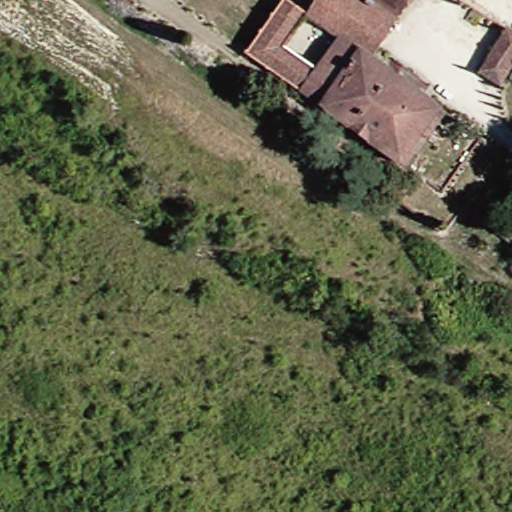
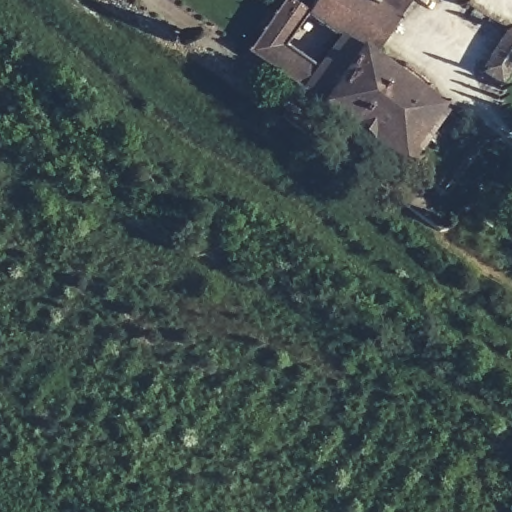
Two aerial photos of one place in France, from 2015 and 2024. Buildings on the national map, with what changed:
unchanged [(324,69),(310,90),(255,51),(287,0),(298,0),(312,12),(291,47),(324,69)]
unchanged [(441,121),(431,137),(415,164),(310,90),(324,69),(346,36),(312,12),(318,4),(312,0),(414,0),(378,57),(441,102),(458,113),(449,127),(441,121)]
unchanged [(482,71),(509,26),(512,28),(512,66),(501,83),(482,71)]

